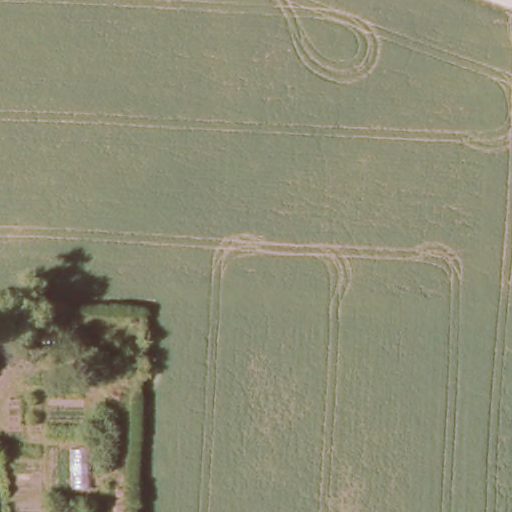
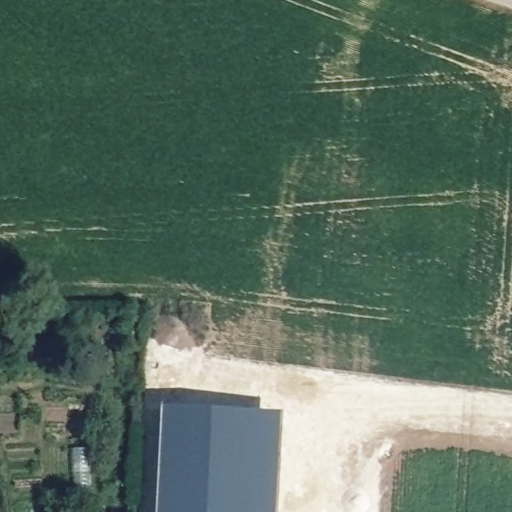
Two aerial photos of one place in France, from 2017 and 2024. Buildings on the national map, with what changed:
new [(160,408),(283,415),(278,512),(155,512),(160,408)]

